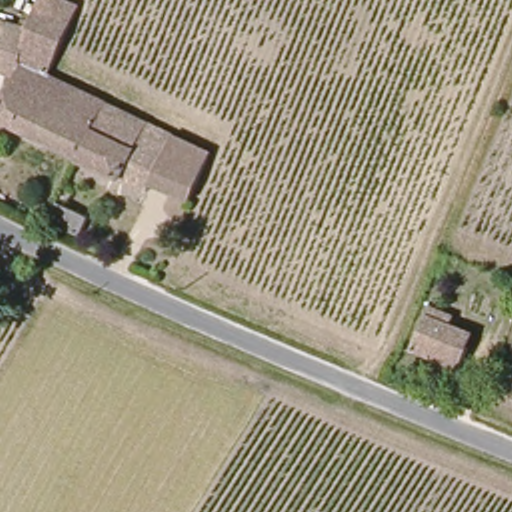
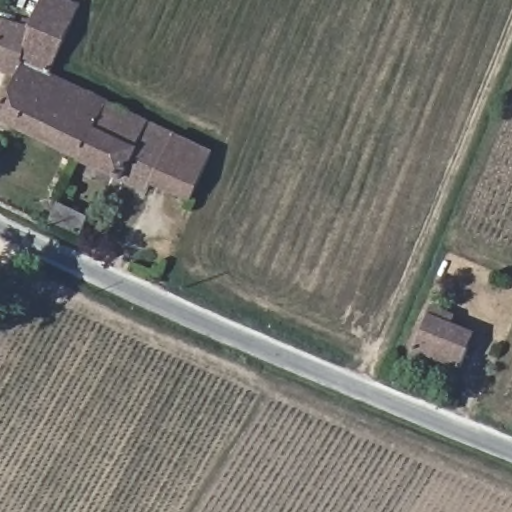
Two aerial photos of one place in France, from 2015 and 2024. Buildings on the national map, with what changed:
unchanged [(0,55),(0,35),(1,31),(0,31),(0,15),(6,17),(22,23),(24,17),(29,20),(37,0),(74,0),(78,2),(52,70),(105,98),(80,153),(0,113),(0,102),(19,64),(0,55)]
unchanged [(147,188),(80,153),(105,98),(211,149),(191,196),(174,186),(153,177),(147,188)]
unchanged [(59,204),(91,218),(82,236),(51,222),(59,204)]
unchanged [(459,328),(453,340),(469,347),(459,370),(412,350),(427,315),(459,328)]

